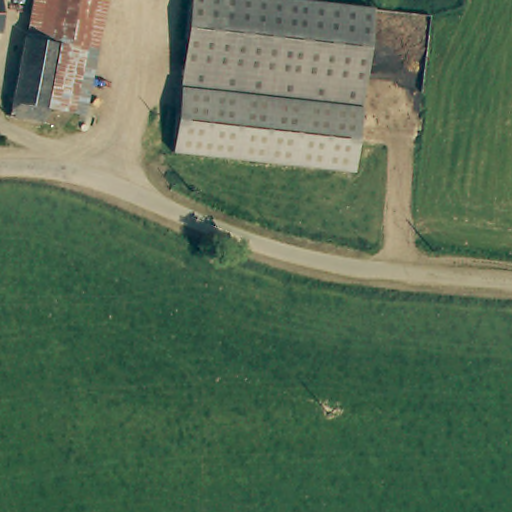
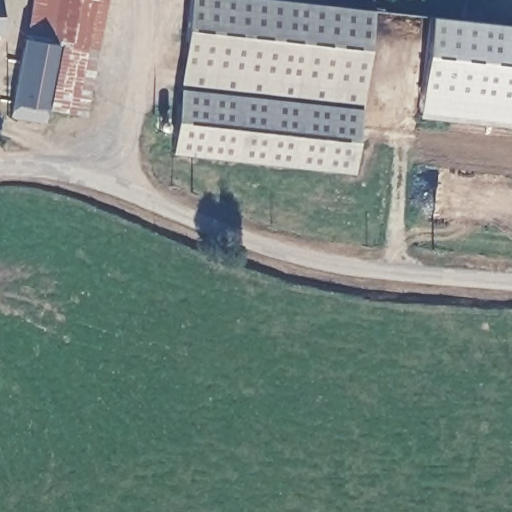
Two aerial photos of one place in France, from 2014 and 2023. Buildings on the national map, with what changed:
unchanged [(53,111),(64,46),(29,43),(32,0),(106,0),(99,51),(89,50),(80,113),(53,111)]
unchanged [(367,2),(357,103),(185,87),(194,0),(346,0),(367,2)]
new [(512,127),(418,116),(430,14),(512,25),(512,127)]
unchanged [(64,46),(53,111),(51,126),(22,122),(12,121),(25,42),(29,43),(64,46)]
unchanged [(349,172),(179,153),(185,87),(357,103),(349,172)]

